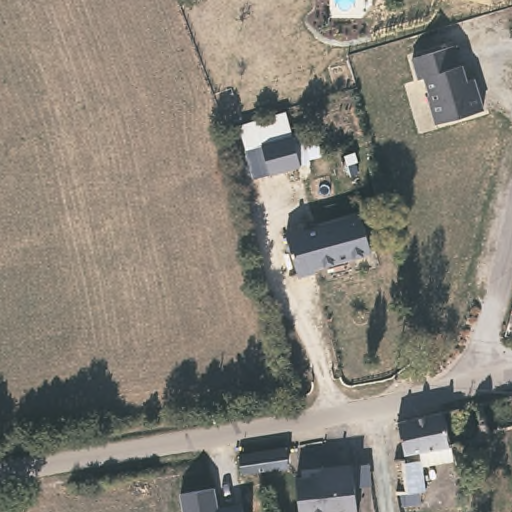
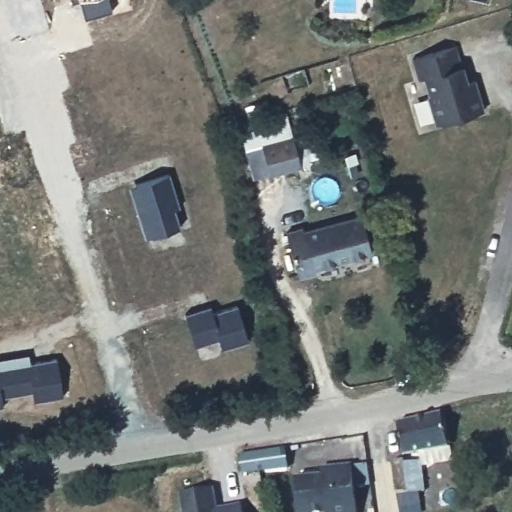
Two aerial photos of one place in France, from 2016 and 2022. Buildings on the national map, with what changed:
unchanged [(476,84),(482,104),(435,117),(427,89),(429,89),(424,71),(419,72),(413,51),(454,39),(460,60),(461,59),(466,75),(473,72),(476,84)]
unchanged [(249,149),(265,144),(297,134),(305,162),(273,172),(258,177),(249,149)]
new [(168,172),(179,205),(174,206),(180,225),(144,236),(137,212),(144,210),(135,182),(168,172)]
unchanged [(371,256),(316,274),(317,278),(299,284),(286,239),(305,233),(306,235),(360,219),(371,256)]
unchanged [(512,305),(512,338),(503,335),(512,305)]
new [(209,307),(211,315),(236,306),(247,342),(221,350),(218,340),(194,348),(184,315),(209,307)]
new [(29,358),(30,365),(57,360),(64,399),(35,404),(33,393),(2,399),(4,410),(0,411),(0,363),(29,358)]
unchanged [(448,443),(403,455),(394,419),(442,408),(448,443)]
unchanged [(508,452),(495,455),(491,440),(504,437),(508,452)]
unchanged [(288,472),(261,481),(241,480),(241,458),(284,451),(288,472)]
unchanged [(428,489),(412,493),(405,463),(420,459),(428,489)]
unchanged [(301,512),(296,481),(323,477),(321,470),(352,465),(360,512),(301,512)]
unchanged [(218,506),(241,503),(242,512),(180,512),(177,493),(215,487),(218,506)]

